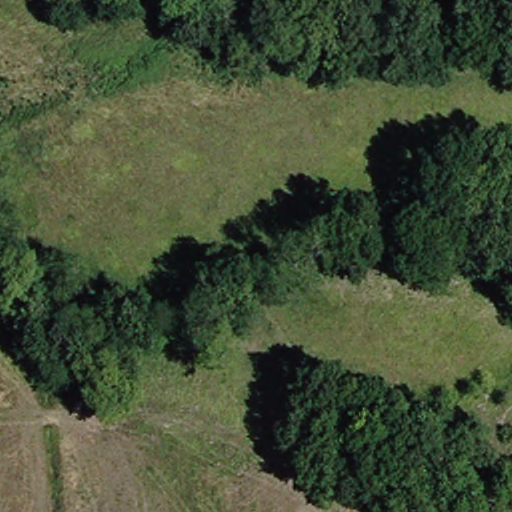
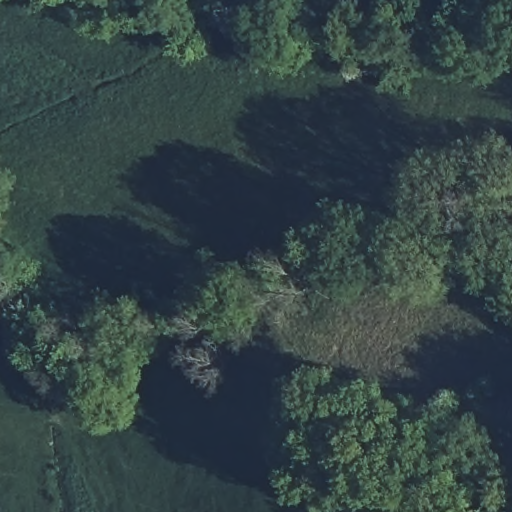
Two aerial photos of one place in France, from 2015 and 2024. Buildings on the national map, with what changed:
[]

